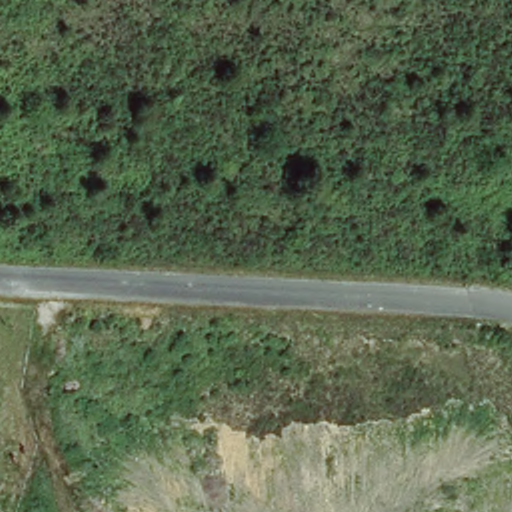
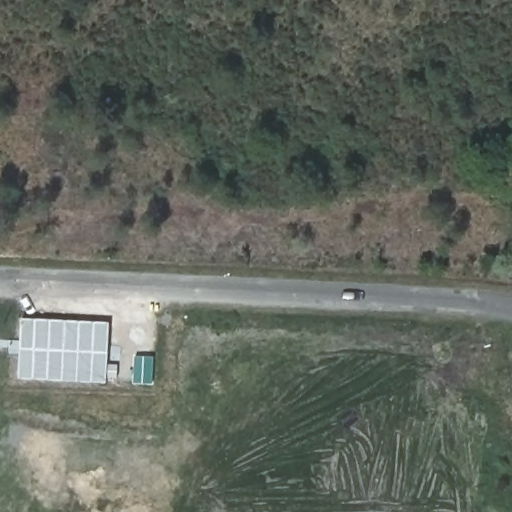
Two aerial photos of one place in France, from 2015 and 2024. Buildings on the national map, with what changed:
new [(110,323),(107,383),(19,379),(22,319),(110,323)]
new [(135,357),(154,358),(152,385),(133,384),(135,357)]

